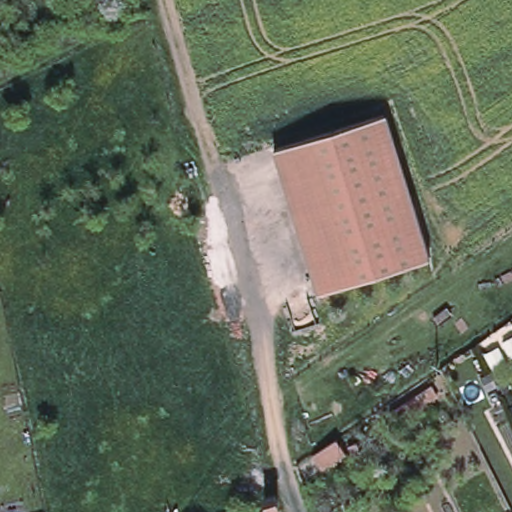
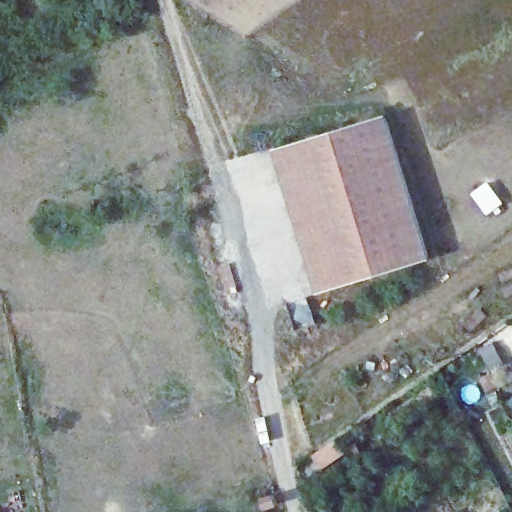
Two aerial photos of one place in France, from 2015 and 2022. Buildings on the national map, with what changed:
unchanged [(385,116),(429,258),(320,293),(276,149),(385,116)]
unchanged [(439,394),(397,420),(390,410),(432,384),(439,394)]
unchanged [(342,452),(320,468),(310,454),(332,439),(342,452)]
unchanged [(352,439),(357,449),(349,453),(344,443),(352,439)]

